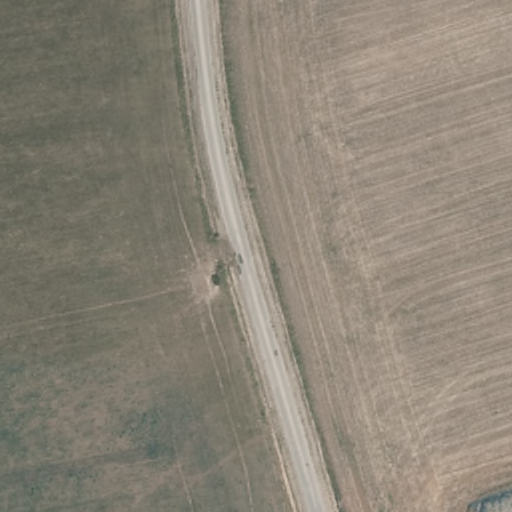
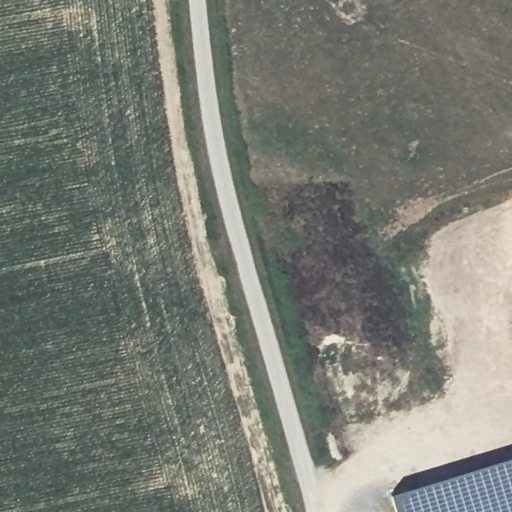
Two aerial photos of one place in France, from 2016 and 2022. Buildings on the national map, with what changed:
new [(391,492),(512,455),(512,512),(396,512),(391,492)]

